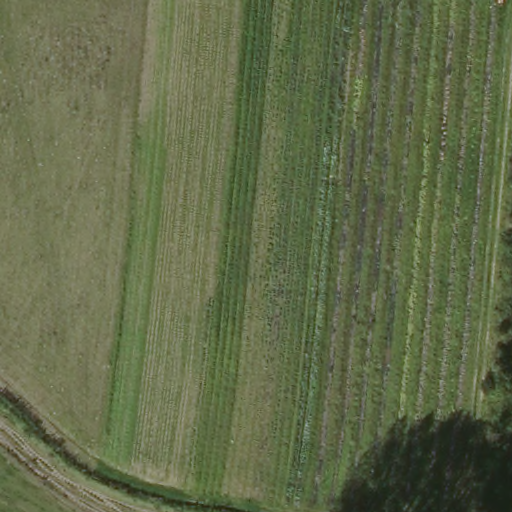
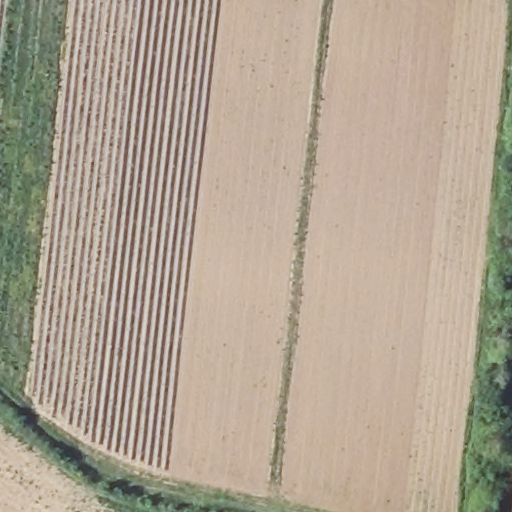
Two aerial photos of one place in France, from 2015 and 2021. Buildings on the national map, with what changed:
unchanged [(512,512),(510,512),(512,494),(512,512)]

